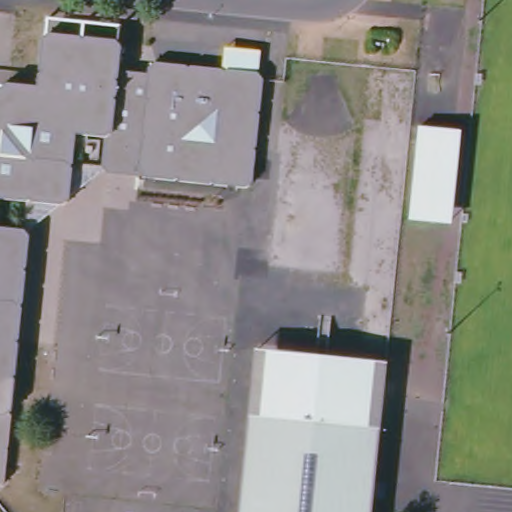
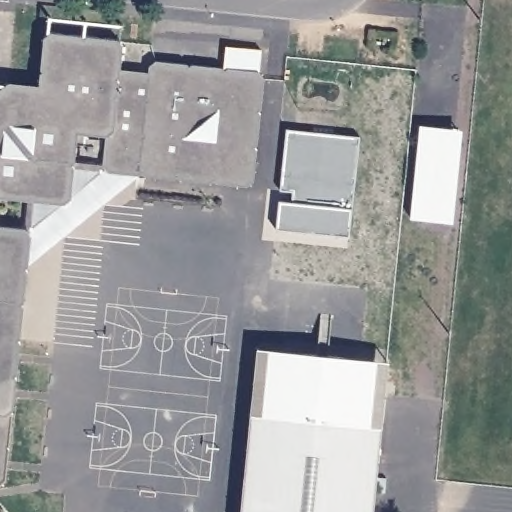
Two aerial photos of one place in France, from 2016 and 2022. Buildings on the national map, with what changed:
unchanged [(62,205),(0,199),(0,90),(3,87),(7,91),(35,93),(40,41),(49,33),(112,40),(119,47),(117,72),(145,75),(147,67),(152,62),(256,73),(261,79),(248,183),(242,188),(140,178),(99,173),(102,136),(69,132),(62,205)]
unchanged [(460,128),(451,223),(405,218),(414,122),(460,128)]
new [(280,200),(291,202),(292,192),(280,190),(287,129),(359,137),(352,210),(350,237),(277,228),(280,200)]
unchanged [(25,231),(0,480),(0,228),(25,231)]
unchanged [(390,361),(376,512),(243,512),(258,349),(390,361)]

